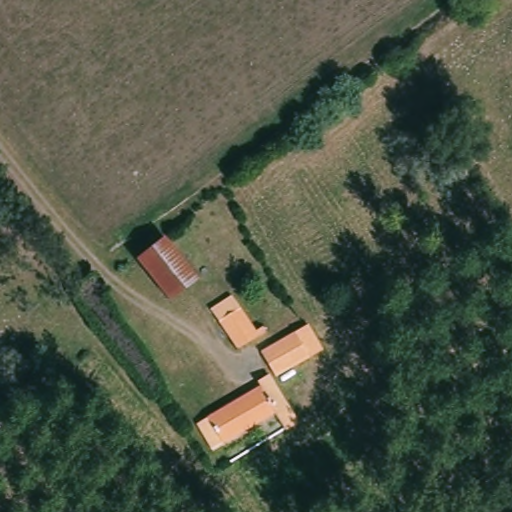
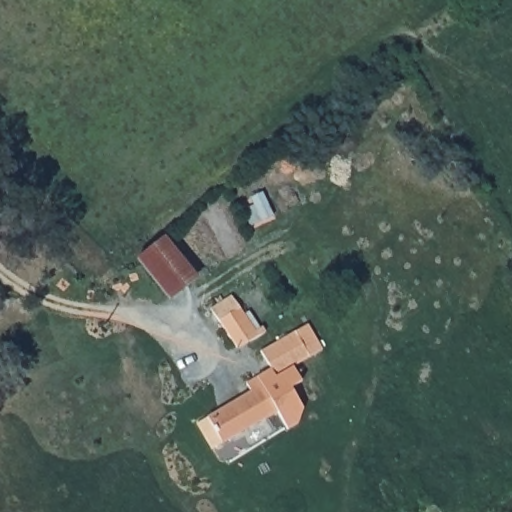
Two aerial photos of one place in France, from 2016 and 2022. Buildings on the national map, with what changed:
unchanged [(135,265),(155,249),(164,242),(194,286),(187,291),(166,307),(135,265)]
unchanged [(271,327),(260,337),(242,349),(212,311),(211,313),(232,294),(258,325),(266,320),(271,327)]
unchanged [(322,351),(275,379),(261,353),(307,327),(322,351)]
unchanged [(275,379),(303,424),(290,431),(277,411),(216,448),(201,424),(263,389),(258,381),(270,372),(275,379)]

